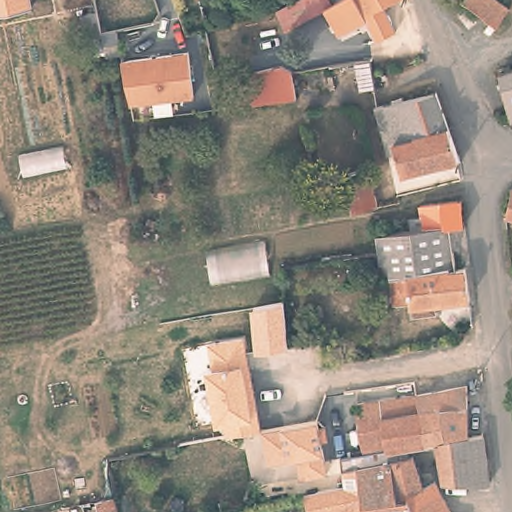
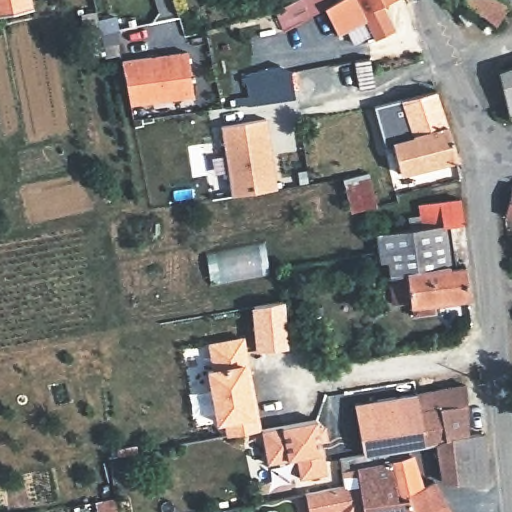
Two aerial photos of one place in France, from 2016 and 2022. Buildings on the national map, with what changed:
unchanged [(0,13),(0,0),(27,0),(28,8),(0,13)]
unchanged [(284,33),(282,32),(276,16),(273,10),(276,8),(297,0),(341,0),(322,11),(284,33)]
unchanged [(394,31),(378,41),(374,42),(365,24),(339,41),(322,11),(341,0),(395,0),(382,7),(394,31)]
unchanged [(462,0),(465,0),(463,1),(462,0)]
unchanged [(512,8),(498,25),(468,0),(504,0),(512,6),(512,8)]
unchanged [(85,9),(87,8),(100,5),(105,30),(90,33),(85,9)]
unchanged [(125,60),(186,51),(193,95),(192,95),(131,103),(129,104),(121,60),(125,60)]
unchanged [(255,108),(253,102),(247,83),(241,86),(240,81),(246,79),(257,75),(255,71),(286,62),(296,96),(263,101),(264,106),(255,108)]
unchanged [(369,62),(371,79),(373,89),(358,91),(356,91),(352,67),(353,65),(369,62)]
unchanged [(512,120),(509,120),(497,74),(512,69),(512,120)]
unchanged [(376,104),(436,89),(458,157),(456,157),(403,170),(400,170),(393,143),(388,144),(385,144),(376,104)]
new [(267,119),(278,189),(230,196),(220,126),(267,119)]
unchanged [(368,170),(377,204),(353,210),(349,210),(341,175),(368,170)]
unchanged [(512,189),(512,220),(503,219),(503,216),(511,189),(512,189)]
unchanged [(434,303),(434,313),(412,316),(410,301),(403,302),(394,303),(392,302),(388,279),(386,259),(377,261),(376,254),(374,234),(422,229),(418,208),(459,201),(462,223),(450,226),(455,258),(456,268),(464,268),(467,299),(434,303)]
unchanged [(272,276),(211,288),(204,255),(262,244),(272,276)]
new [(283,301),(288,348),(255,352),(250,307),(283,301)]
unchanged [(249,432),(226,436),(223,422),(215,423),(205,371),(211,370),(209,358),(207,345),(240,338),(243,353),(254,413),(257,430),(249,432)]
unchanged [(466,387),(467,408),(442,411),(417,414),(414,396),(466,387)]
unchanged [(361,448),(355,406),(414,396),(417,414),(423,448),(407,451),(385,454),(384,452),(362,455),(361,448)]
unchanged [(442,411),(467,408),(468,437),(487,432),(493,483),(472,484),(444,482),(441,475),(440,467),(437,446),(423,448),(417,414),(442,411)]
unchanged [(282,426),(315,419),(325,473),(299,478),(295,458),(266,464),(259,430),(282,426)]
unchanged [(407,451),(424,490),(436,483),(445,499),(452,512),(410,512),(407,499),(391,501),(390,500),(386,465),(385,454),(407,451)]
unchanged [(339,458),(345,457),(362,455),(384,452),(385,454),(386,465),(390,500),(391,501),(407,499),(410,512),(363,512),(359,484),(348,486),(343,486),(339,458)]
unchanged [(348,486),(359,484),(363,512),(307,512),(305,496),(305,493),(343,486),(348,486)]

